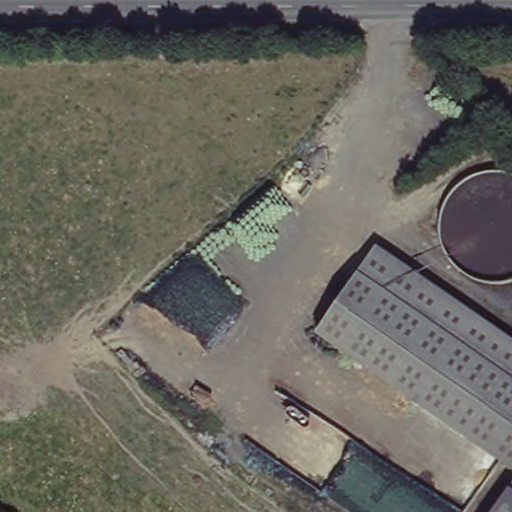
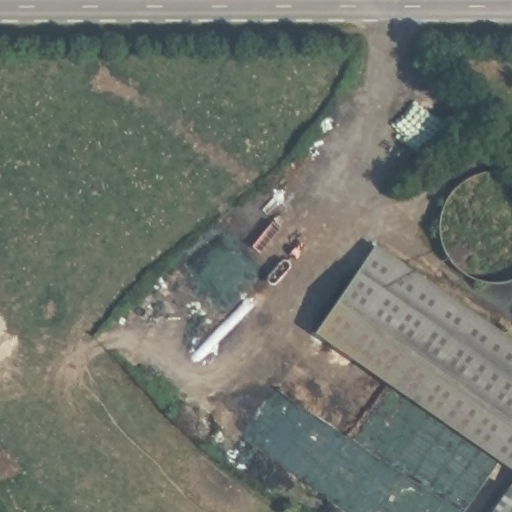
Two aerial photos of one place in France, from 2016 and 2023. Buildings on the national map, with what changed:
unchanged [(484,512),(506,473),(311,334),(370,248),(512,344),(512,512),(484,512)]

